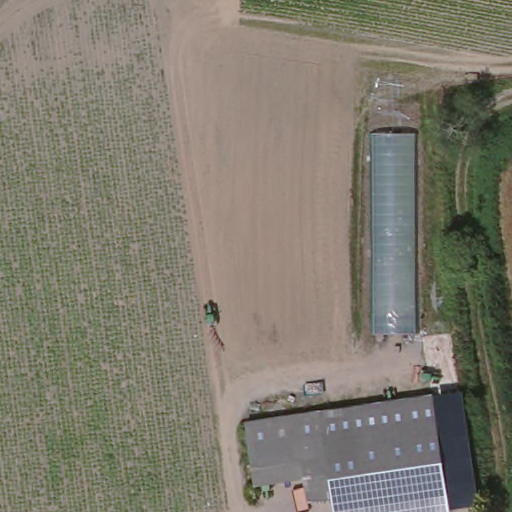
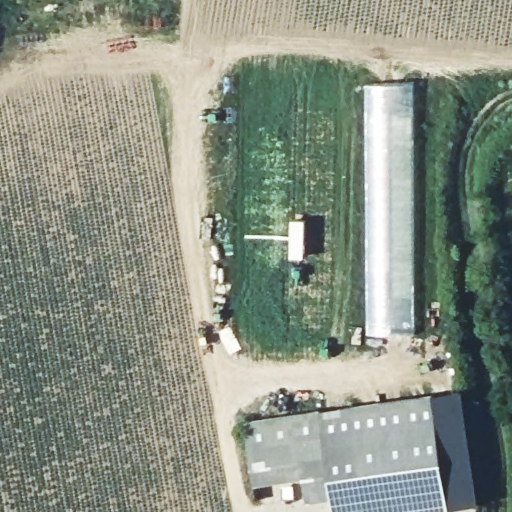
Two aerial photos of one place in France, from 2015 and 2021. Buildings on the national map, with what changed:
unchanged [(424,84),(417,331),(373,332),(371,86),(424,84)]
unchanged [(424,512),(335,512),(334,500),(308,499),(304,477),(254,485),(246,421),(433,394),(462,390),(480,504),(424,512)]

